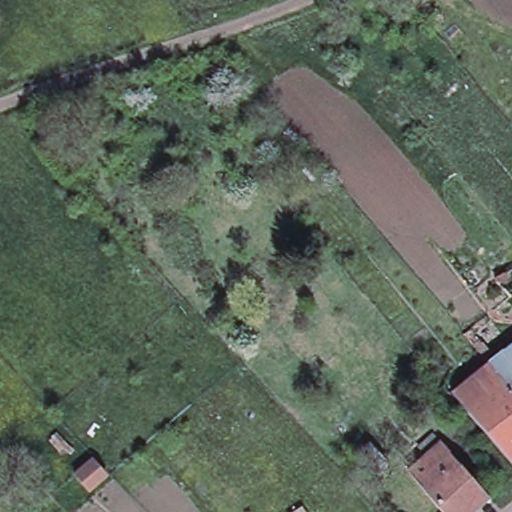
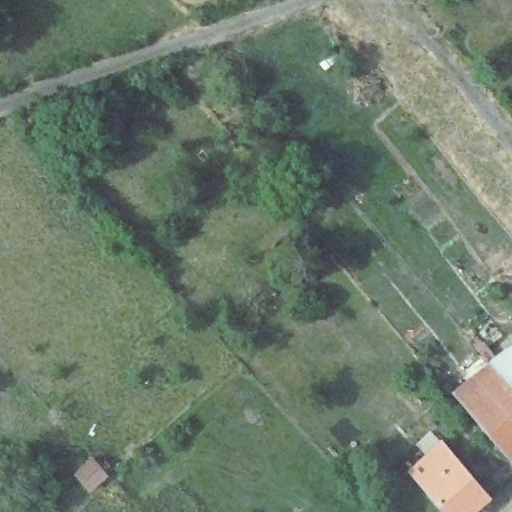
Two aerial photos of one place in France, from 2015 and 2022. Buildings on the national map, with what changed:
unchanged [(496,280),(512,267),(512,297),(511,298),(496,280)]
unchanged [(464,333),(470,328),(495,358),(512,345),(512,392),(488,365),(489,364),(464,333)]
unchanged [(512,392),(512,463),(454,395),(488,365),(512,392)]
unchanged [(468,512),(443,512),(409,470),(439,442),(442,440),(489,494),(486,496),(474,507),(468,512)]
unchanged [(371,442),(390,464),(378,474),(359,453),(371,442)]
unchanged [(110,478),(93,493),(79,479),(98,464),(110,478)]

